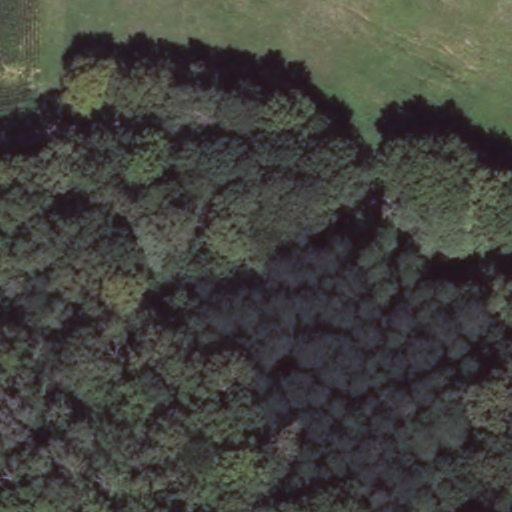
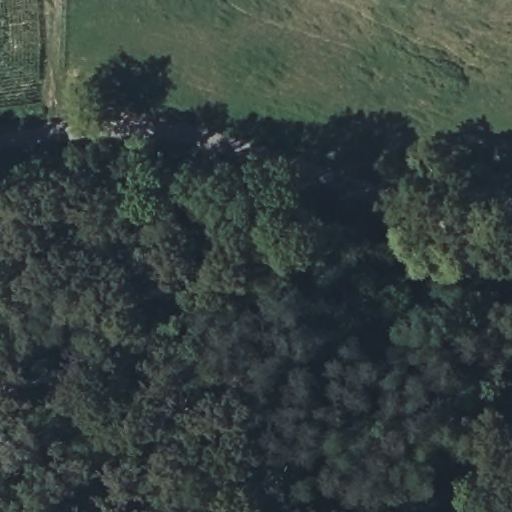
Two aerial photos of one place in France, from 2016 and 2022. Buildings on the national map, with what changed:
[]

